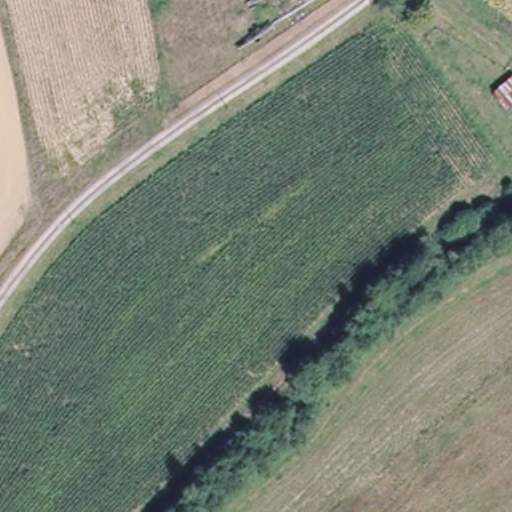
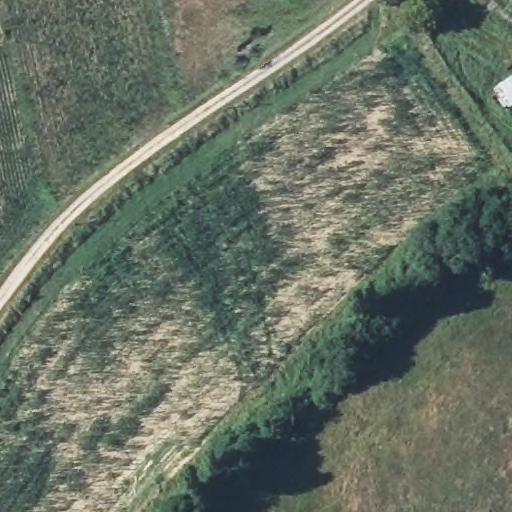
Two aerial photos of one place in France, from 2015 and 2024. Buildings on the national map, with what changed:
unchanged [(512,74),(512,110),(497,86),(512,74)]

